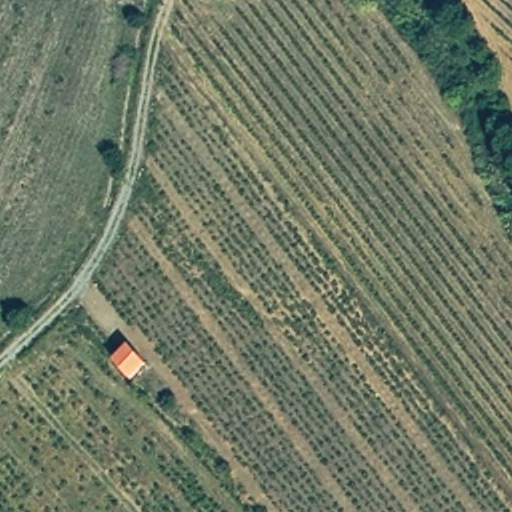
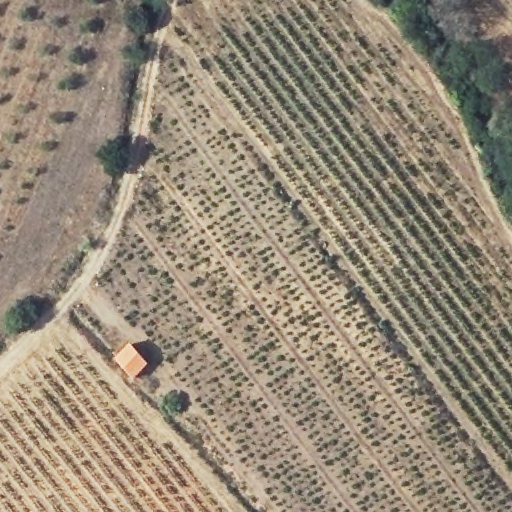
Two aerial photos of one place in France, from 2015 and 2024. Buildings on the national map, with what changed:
unchanged [(145,367),(129,381),(112,360),(126,346),(145,367)]

